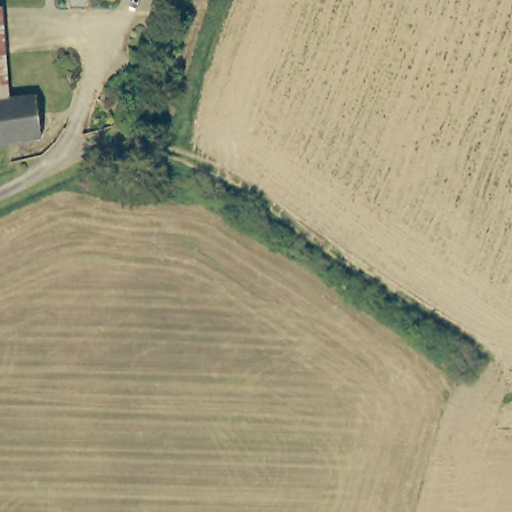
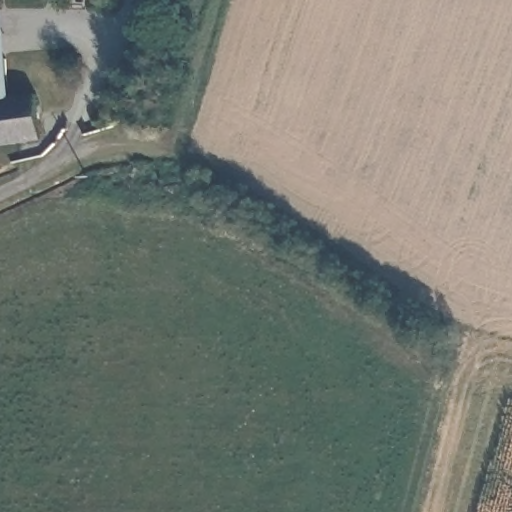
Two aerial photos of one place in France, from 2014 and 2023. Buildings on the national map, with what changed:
unchanged [(0,102),(0,79),(1,101),(0,102)]
unchanged [(1,101),(29,98),(35,141),(0,147),(0,102),(1,101)]

